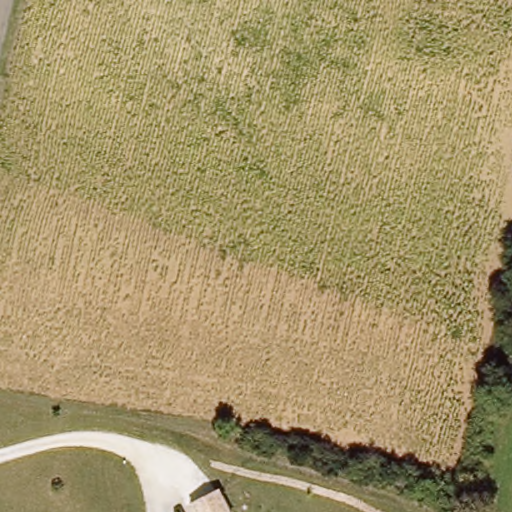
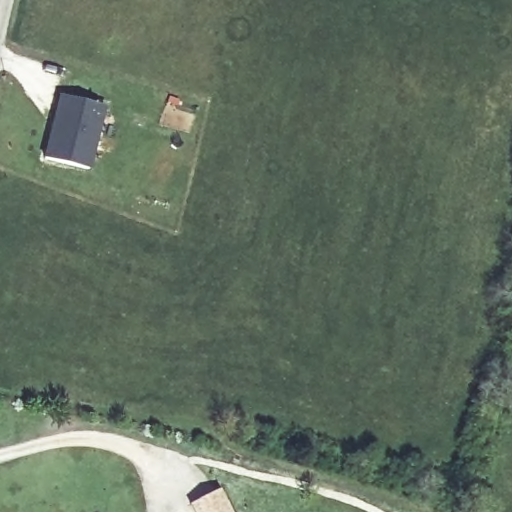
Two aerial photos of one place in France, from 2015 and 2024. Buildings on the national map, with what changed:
new [(107,106),(90,169),(42,157),(60,94),(107,106)]
unchanged [(190,502),(215,489),(226,509),(227,512),(192,512),(188,503),(190,502)]

